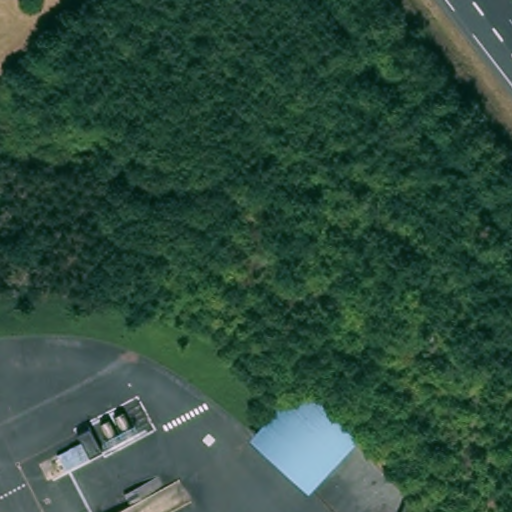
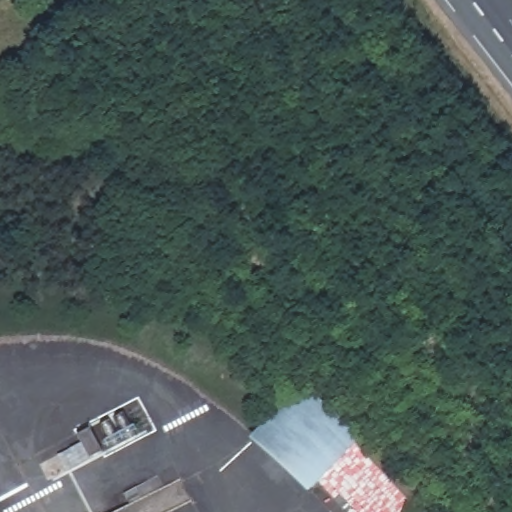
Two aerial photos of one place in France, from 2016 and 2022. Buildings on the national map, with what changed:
unchanged [(294,391),(351,447),(313,486),(256,432),(294,391)]

